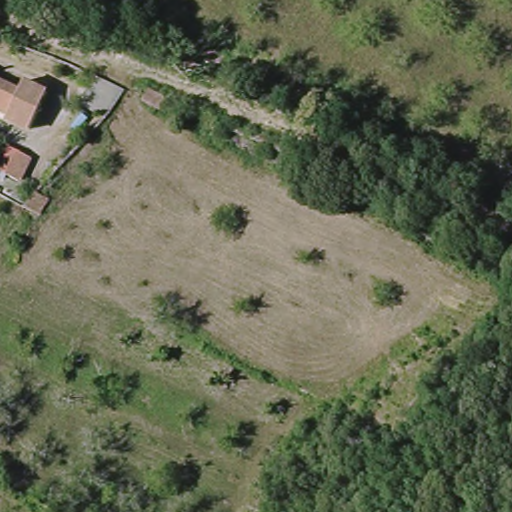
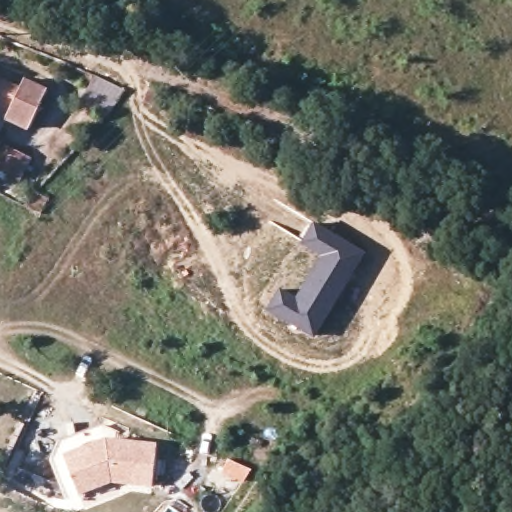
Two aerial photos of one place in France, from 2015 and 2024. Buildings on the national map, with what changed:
unchanged [(132,102),(117,123),(77,106),(97,80),(132,102)]
unchanged [(0,110),(0,82),(27,93),(33,85),(50,92),(34,127),(15,120),(16,117),(0,110)]
unchanged [(172,105),(169,111),(151,102),(159,87),(177,95),(172,105)]
unchanged [(32,157),(24,179),(0,169),(0,159),(7,146),(32,157)]
unchanged [(37,212),(47,194),(62,200),(52,220),(37,212)]
new [(281,287),(297,295),(322,255),(302,241),(314,221),(367,251),(331,313),(315,337),(268,308),(281,287)]
new [(157,443),(151,488),(113,482),(80,495),(63,453),(107,437),(157,443)]

